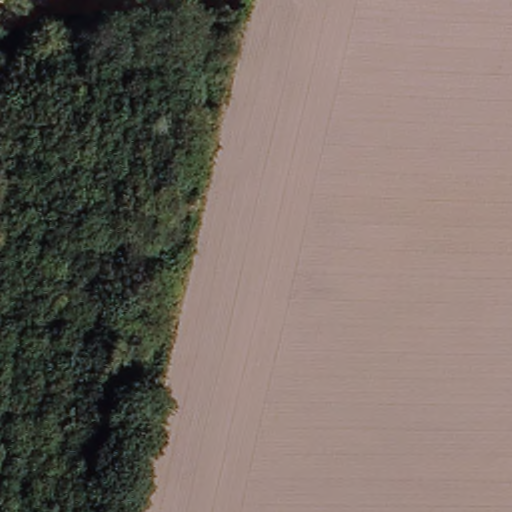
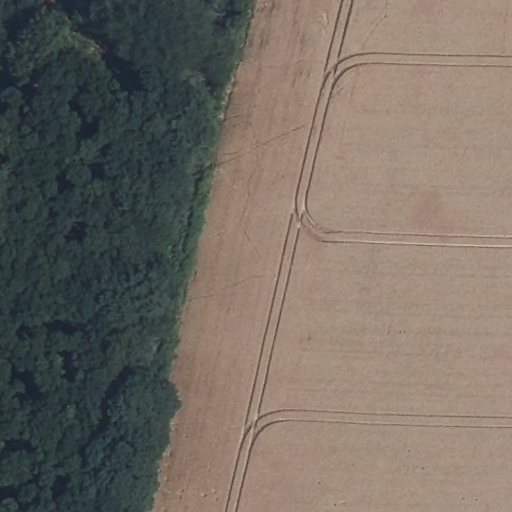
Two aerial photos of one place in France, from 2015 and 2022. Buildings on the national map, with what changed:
unchanged [(50,5),(51,0),(68,0),(68,6),(50,5)]
unchanged [(143,0),(169,0),(168,7),(143,6),(143,0)]

